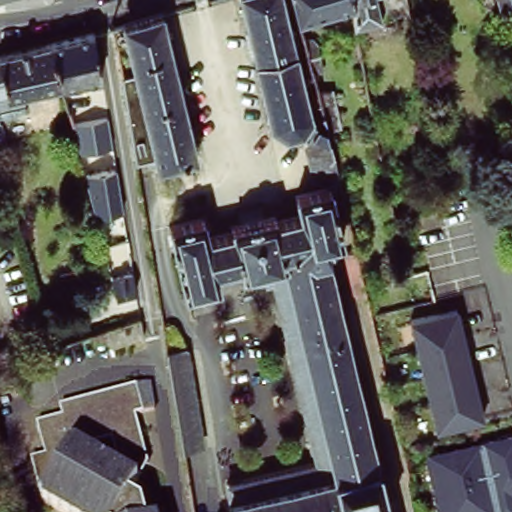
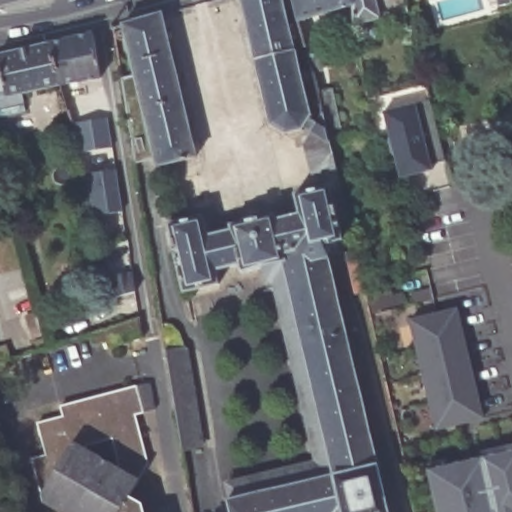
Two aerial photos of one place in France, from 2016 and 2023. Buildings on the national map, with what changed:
unchanged [(330,183),(323,183),(318,182),(311,171),(303,137),(302,135),(286,139),(270,129),(239,0),(291,0),(294,11),(285,14),(290,35),(294,33),(296,39),(291,41),(310,119),(322,117),(323,116),(318,93),(330,90),(339,127),(326,131),(329,144),(339,182),(330,183)]
unchanged [(351,0),(352,8),(297,22),(294,11),(291,0),(351,0)]
unchanged [(374,3),(379,24),(355,27),(352,8),(351,0),(381,0),(381,1),(374,3)]
unchanged [(401,18),(399,14),(394,15),(391,0),(402,0),(406,17),(401,18)]
unchanged [(509,17),(498,19),(493,0),(512,0),(512,6),(508,7),(509,17)]
unchanged [(130,58),(122,25),(161,14),(196,156),(163,164),(156,165),(155,160),(141,164),(141,168),(133,169),(115,61),(130,58)]
unchanged [(81,34),(88,77),(50,86),(40,44),(81,34)]
unchanged [(309,41),(316,44),(321,71),(311,74),(308,65),(306,57),(303,43),(309,41)]
unchanged [(40,44),(50,86),(56,111),(48,113),(41,88),(0,98),(0,53),(40,44)]
new [(428,99),(443,160),(429,164),(429,168),(399,176),(382,111),(428,99)]
unchanged [(78,150),(73,124),(105,119),(110,147),(78,150)]
unchanged [(93,212),(85,175),(114,168),(121,210),(93,212)]
unchanged [(228,499),(230,499),(228,487),(317,466),(274,284),(266,286),(263,271),(240,276),(238,268),(216,274),(219,288),(184,296),(168,228),(203,219),(208,239),(230,234),(229,229),(274,217),(276,222),(299,217),(294,198),(329,190),(343,245),(324,249),(387,512),(231,512),(228,499)]
unchanged [(366,291),(354,293),(344,253),(356,251),(366,291)]
unchanged [(130,273),(133,294),(113,299),(108,278),(130,273)]
unchanged [(486,420),(437,429),(411,319),(459,308),(486,420)]
unchanged [(189,348),(206,446),(187,449),(186,449),(169,351),(189,348)]
unchanged [(40,502),(29,459),(43,456),(34,423),(60,416),(58,406),(148,382),(152,411),(134,415),(144,454),(147,467),(128,499),(139,506),(141,512),(56,512),(40,502)]
unchanged [(429,466),(512,447),(512,512),(440,512),(429,466)]
unchanged [(194,453),(204,512),(196,512),(186,455),(194,453)]

